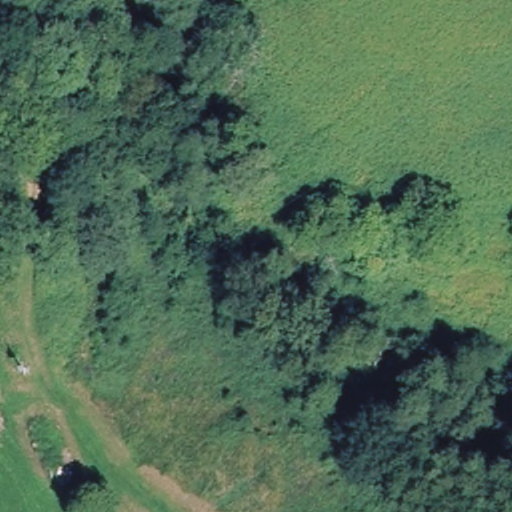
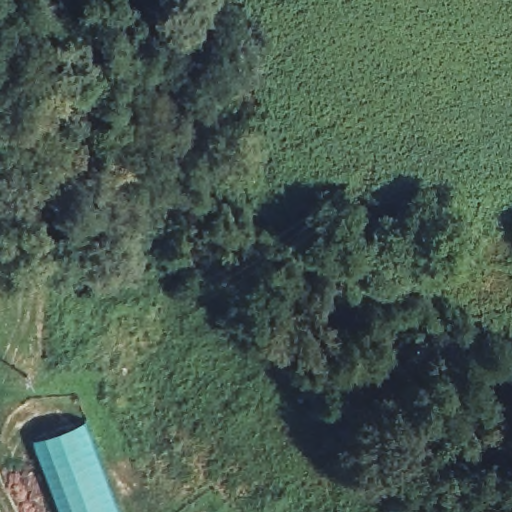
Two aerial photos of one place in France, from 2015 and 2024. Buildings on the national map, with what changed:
new [(83,419),(117,512),(57,512),(29,439),(83,419)]

